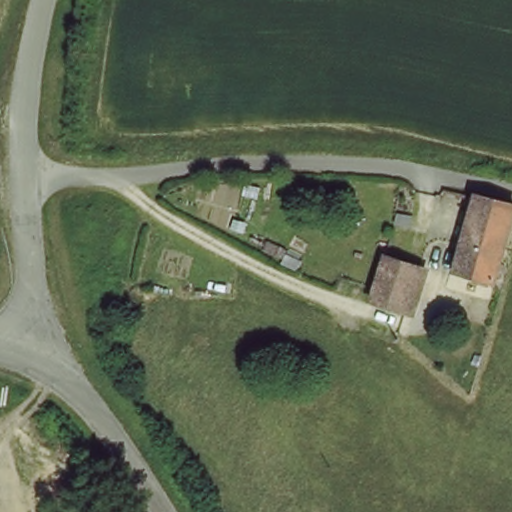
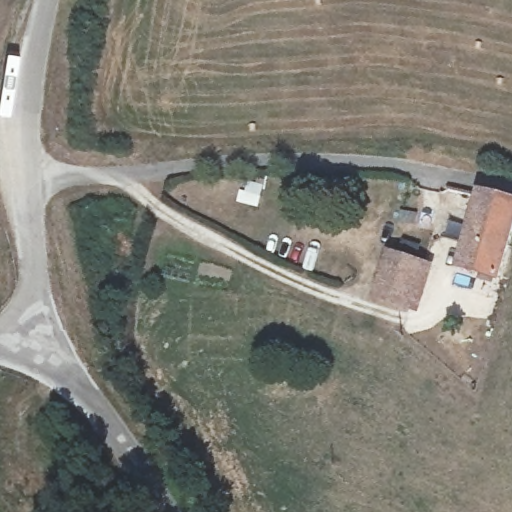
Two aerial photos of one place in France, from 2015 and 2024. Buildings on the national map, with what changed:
unchanged [(458,271),(480,198),(490,200),(512,204),(512,236),(497,284),(458,271)]
unchanged [(398,262),(431,273),(417,314),(384,304),(398,262)]

